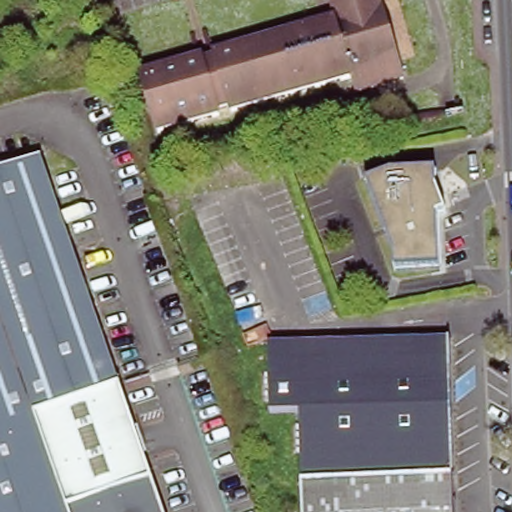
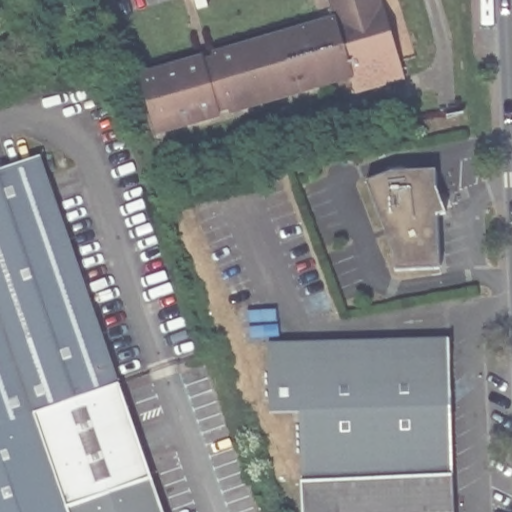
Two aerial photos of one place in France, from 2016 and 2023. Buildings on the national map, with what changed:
unchanged [(352,70),(230,104),(229,98),(217,101),(220,107),(158,124),(142,65),(202,48),(203,53),(216,50),(215,45),(335,10),(332,0),(383,0),(403,71),(355,85),(352,70)]
unchanged [(152,475),(70,504),(73,512),(0,512),(0,168),(39,154),(152,475)]
unchanged [(434,171),(435,189),(445,212),(437,216),(440,268),(394,270),(393,257),(365,182),(391,174),(434,171)]
unchanged [(372,472),(305,475),(303,406),(273,407),(272,340),(453,335),(455,470),(372,472)]
unchanged [(305,475),(372,472),(455,470),(456,512),(307,512),(305,475)]

